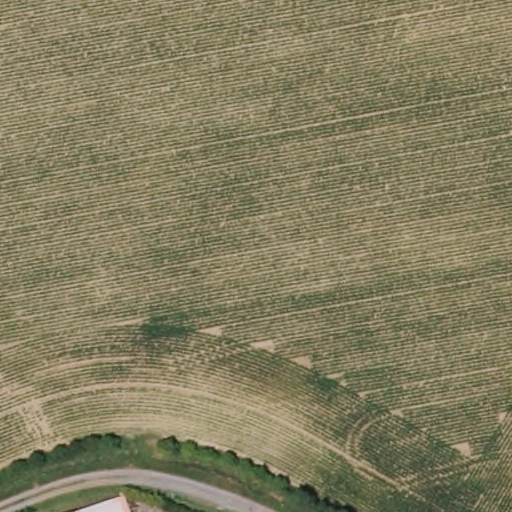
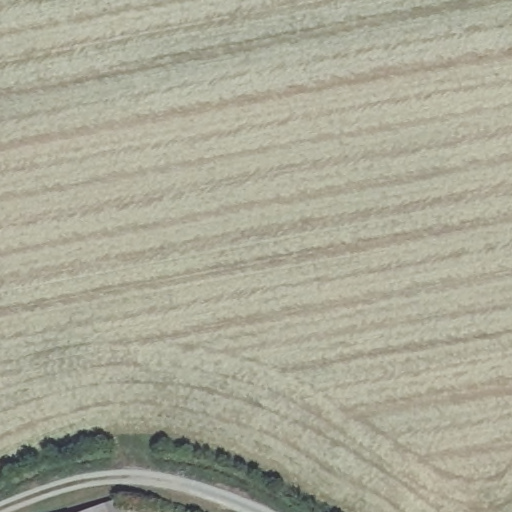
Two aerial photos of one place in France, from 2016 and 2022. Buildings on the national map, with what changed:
unchanged [(129,512),(78,512),(122,495),(129,512)]

